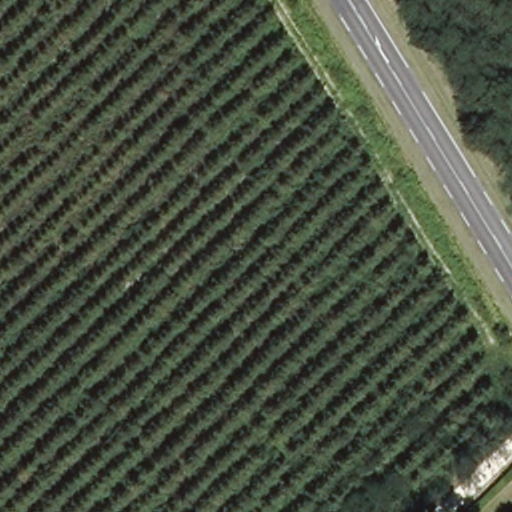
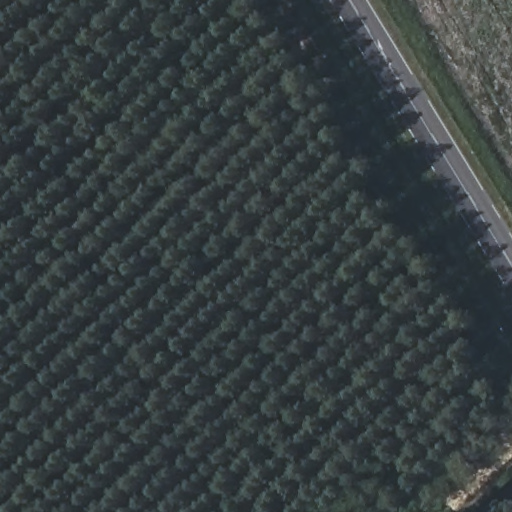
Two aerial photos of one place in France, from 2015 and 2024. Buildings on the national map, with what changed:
[]

